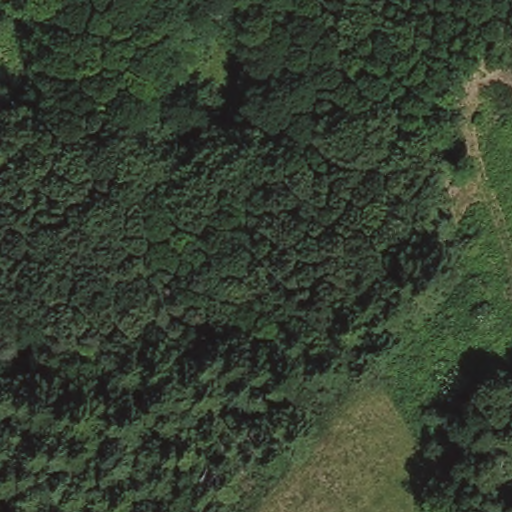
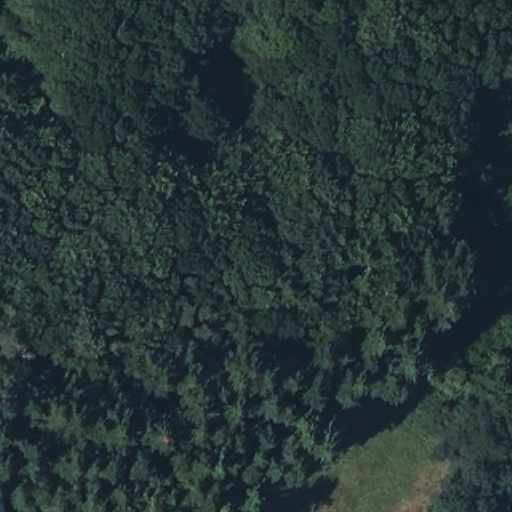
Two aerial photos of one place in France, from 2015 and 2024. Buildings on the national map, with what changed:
[]

